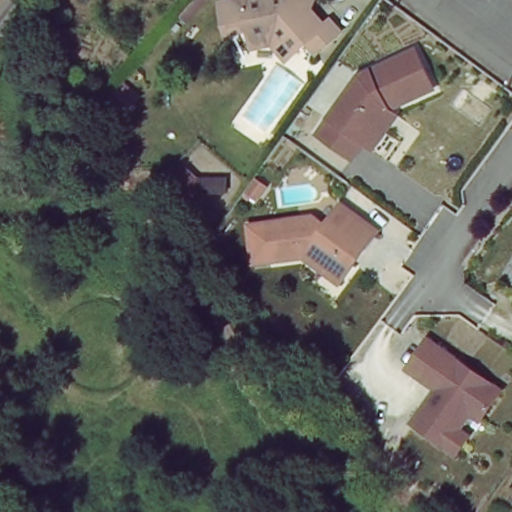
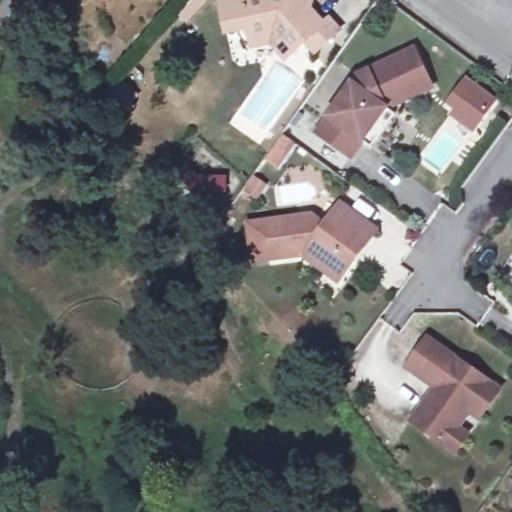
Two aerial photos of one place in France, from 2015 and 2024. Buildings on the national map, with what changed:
unchanged [(282,46),(262,53),(259,43),(256,35),(233,42),(223,13),(235,10),(241,7),(240,0),(309,0),(310,2),(328,15),(335,6),(346,15),(323,46),(311,37),(303,48),(296,57),(282,46)]
unchanged [(367,144),(358,138),(346,153),(313,128),(355,71),(418,49),(431,89),(383,105),(392,111),(367,144)]
unchanged [(145,92),(124,115),(110,101),(131,78),(145,92)]
new [(467,79),(493,102),(468,129),(450,112),(455,106),(448,99),(467,79)]
unchanged [(322,265),(301,249),(268,253),(252,255),(250,243),(247,218),(311,210),(323,219),(339,198),(375,225),(359,247),(337,276),(322,265)]
unchanged [(457,456),(440,443),(406,419),(431,386),(402,365),(423,336),(495,388),(475,417),(464,409),(452,426),(470,438),(457,456)]
unchanged [(512,491),(512,505),(504,500),(512,491)]

